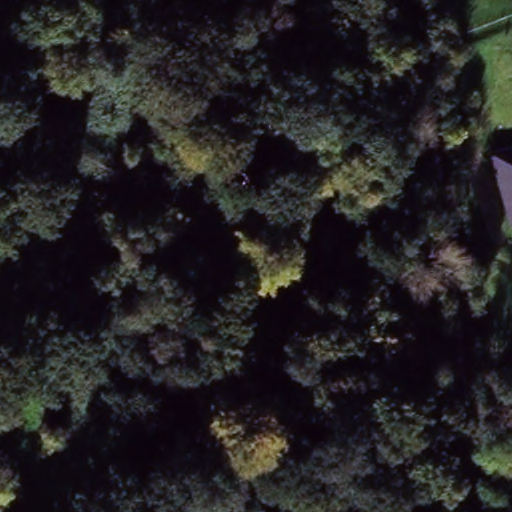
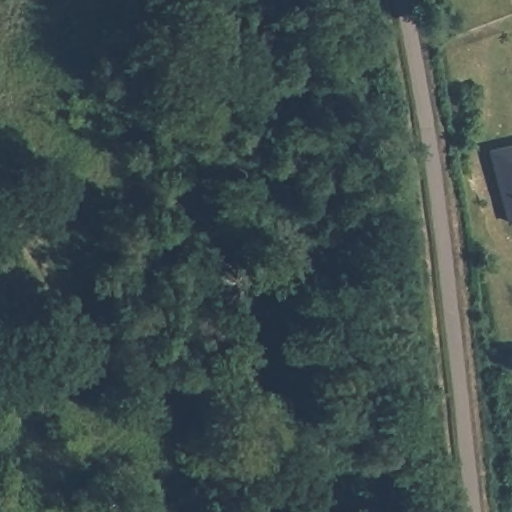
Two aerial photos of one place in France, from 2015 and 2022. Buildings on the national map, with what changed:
unchanged [(491,156),(512,151),(512,229),(511,229),(491,156)]

